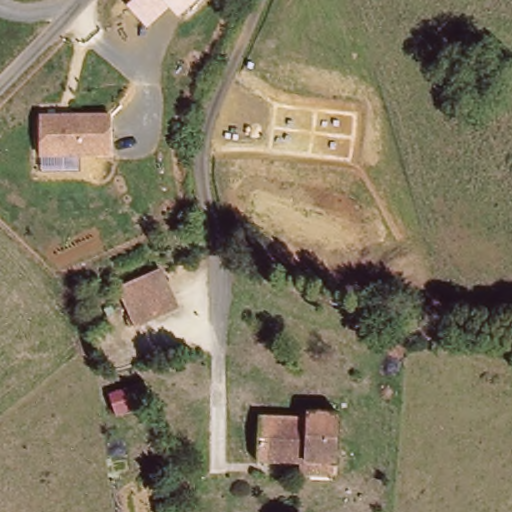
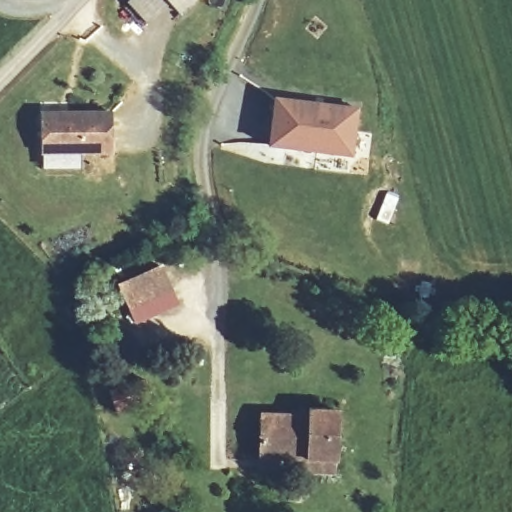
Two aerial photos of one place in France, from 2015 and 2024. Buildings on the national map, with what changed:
new [(125,2),(128,0),(168,0),(170,1),(145,27),(125,2)]
unchanged [(195,0),(180,13),(168,0),(195,0)]
new [(272,102),(353,113),(347,160),(266,149),(272,102)]
unchanged [(45,151),(45,115),(77,114),(73,111),(115,109),(116,149),(112,149),(45,151)]
unchanged [(134,314),(126,295),(167,278),(176,297),(134,314)]
unchanged [(309,403),(338,405),(335,457),(262,453),(264,410),(308,412),(309,403)]

